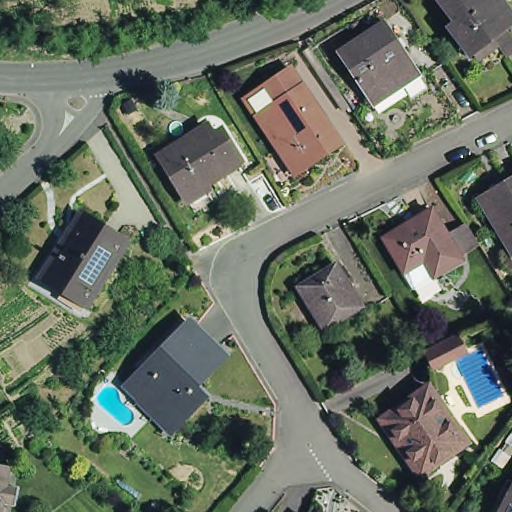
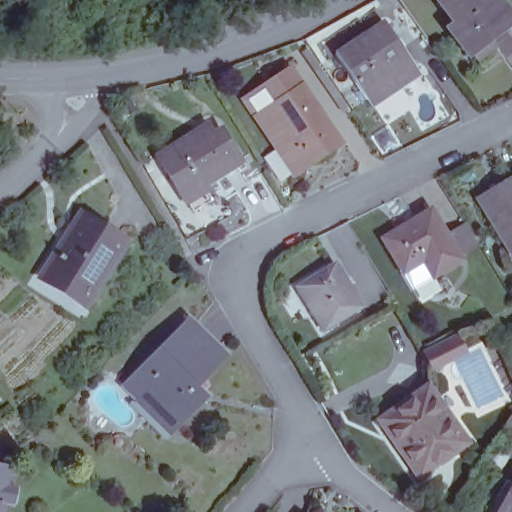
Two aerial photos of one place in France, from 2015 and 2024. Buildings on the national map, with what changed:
unchanged [(511,10),(467,42),(452,20),(457,16),(445,0),(503,0),(511,10)]
unchanged [(384,19),(419,71),(399,84),(397,80),(367,98),(337,51),(384,19)]
unchanged [(260,110),(248,91),(295,61),(307,80),(260,110)]
unchanged [(344,138),(299,167),(260,110),(307,80),(344,138)]
unchanged [(195,124),(201,132),(216,124),(235,155),(180,190),(155,149),(195,124)]
unchanged [(503,186),(504,187),(512,183),(512,258),(479,202),(503,186)]
unchanged [(401,271),(381,236),(430,209),(445,235),(464,223),(477,245),(457,256),(459,260),(431,275),(410,287),(401,271)]
unchanged [(64,288),(43,275),(84,211),(130,241),(118,260),(90,305),(64,288)]
unchanged [(336,260),(363,302),(325,325),(298,283),(336,260)]
unchanged [(217,344),(184,377),(199,392),(175,417),(142,385),(136,390),(125,378),(160,341),(164,344),(191,316),(217,344)]
unchanged [(455,335),(461,349),(434,363),(428,348),(455,335)]
unchanged [(431,387),(470,443),(422,477),(384,421),(431,387)]
unchanged [(9,462),(6,481),(14,482),(18,483),(16,500),(12,500),(4,499),(1,512),(0,512),(0,461),(9,462)]
unchanged [(499,512),(512,488),(512,512),(499,512)]

